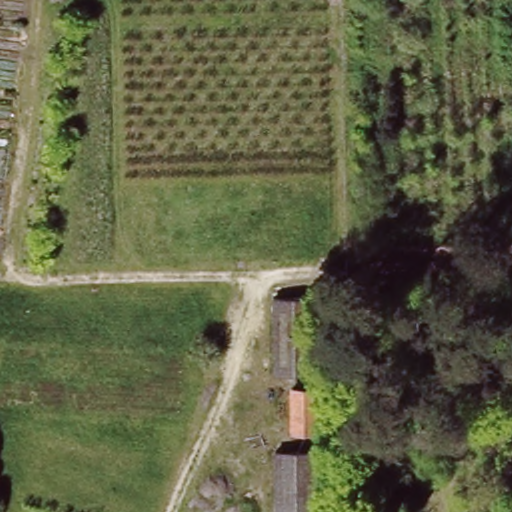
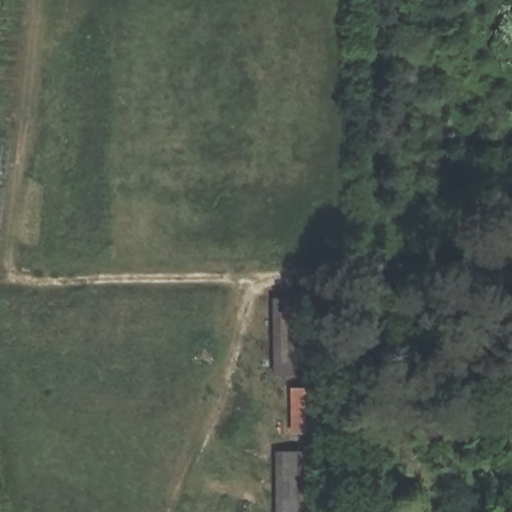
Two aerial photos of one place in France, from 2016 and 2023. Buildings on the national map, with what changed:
unchanged [(270,298),(310,297),(311,372),(271,372),(270,298)]
unchanged [(288,388),(311,387),(312,430),(289,430),(288,388)]
unchanged [(312,450),(313,512),(273,512),(273,451),(312,450)]

